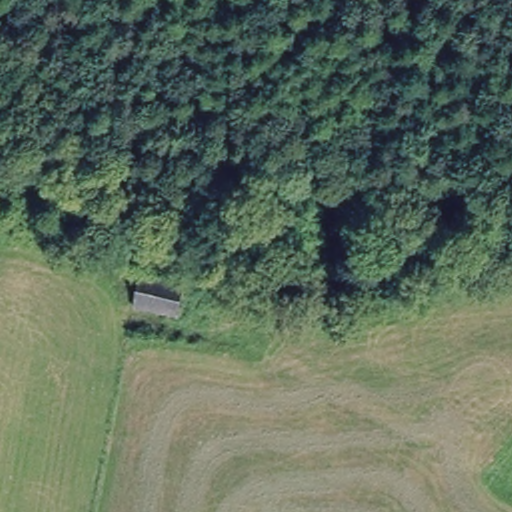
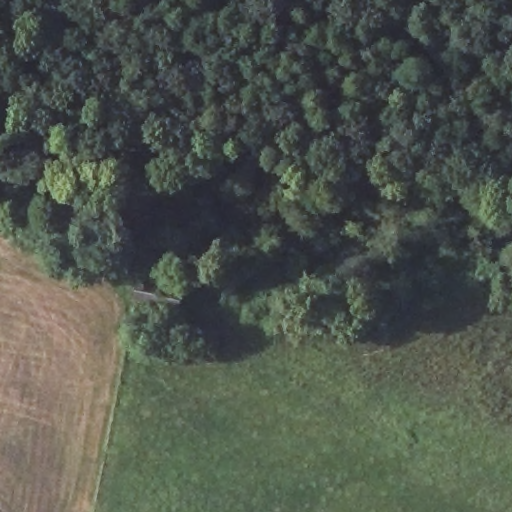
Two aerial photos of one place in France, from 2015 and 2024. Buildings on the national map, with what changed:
unchanged [(179,283),(172,319),(131,310),(137,275),(179,283)]

